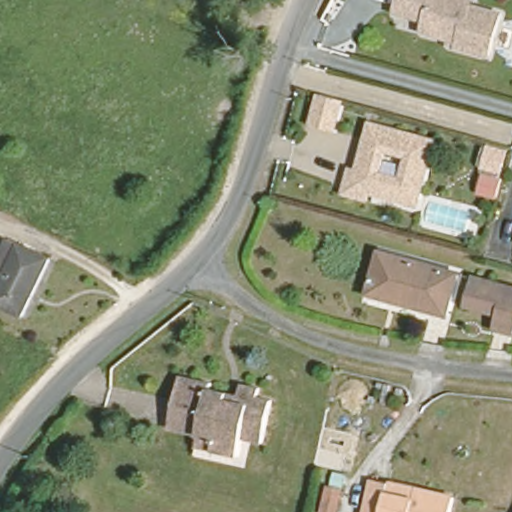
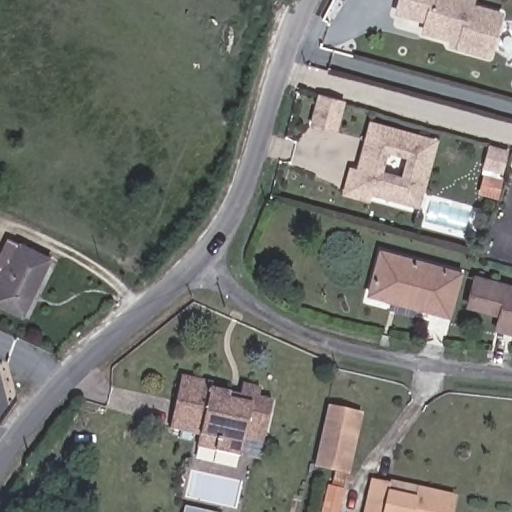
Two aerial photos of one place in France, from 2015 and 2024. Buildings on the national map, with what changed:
unchanged [(450,37),(422,30),(425,20),(395,12),(398,0),(469,0),(468,5),(499,12),(489,54),(458,47),(448,45),(450,37)]
unchanged [(338,104),(331,133),(308,127),(317,98),(338,104)]
unchanged [(346,166),(353,168),(364,124),(436,141),(418,210),(372,199),(371,206),(337,200),(346,166)]
unchanged [(0,306),(0,251),(6,239),(20,245),(50,260),(22,316),(0,306)]
unchanged [(366,289),(377,248),(453,269),(442,310),(366,289)]
unchanged [(512,289),(512,333),(497,328),(502,315),(468,305),(472,294),(476,278),(512,289)]
unchanged [(201,430),(171,424),(181,371),(212,377),(211,385),(239,391),(242,380),(261,384),(258,394),(271,396),(262,438),(242,435),(240,452),(219,448),(197,444),(201,430)]
new [(320,512),(327,484),(331,485),(335,471),(316,468),(330,405),(363,413),(339,512),(320,512)]
unchanged [(359,512),(366,485),(367,474),(411,483),(451,492),(446,512),(359,512)]

